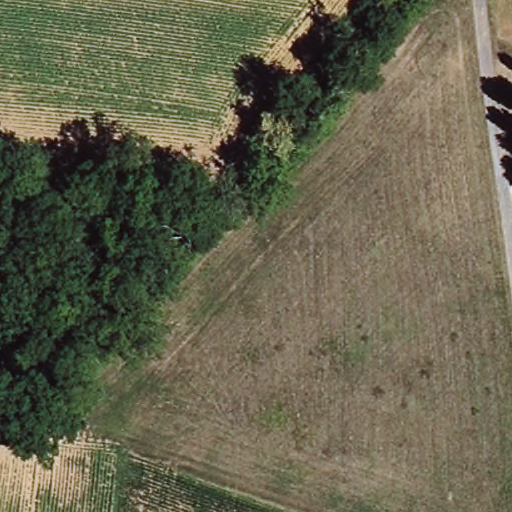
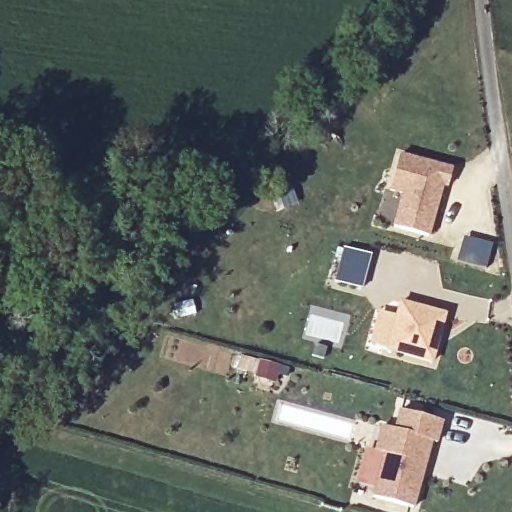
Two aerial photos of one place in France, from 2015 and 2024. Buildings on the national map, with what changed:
new [(401,155),(454,170),(450,187),(444,186),(430,236),(396,227),(405,193),(391,189),(401,155)]
new [(345,249),(371,256),(361,290),(335,283),(345,249)]
new [(372,343),(381,313),(397,318),(401,303),(445,315),(432,362),(387,350),(389,347),(372,343)]
new [(243,356),(289,369),(287,377),(277,374),(276,379),(240,369),(243,356)]
new [(376,453),(382,429),(395,433),(401,413),(442,425),(436,446),(431,445),(423,475),(412,510),(373,499),(376,489),(359,485),(369,452),(376,453)]

